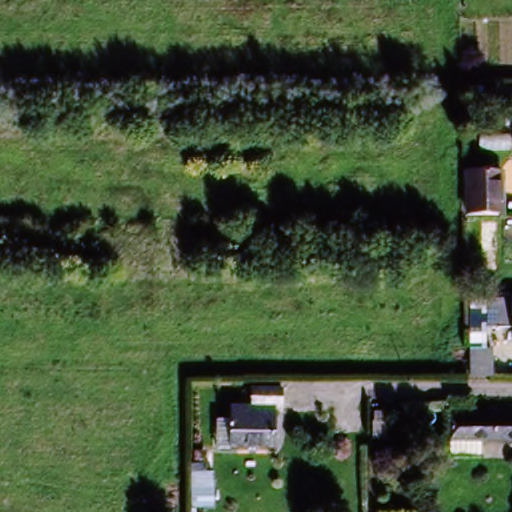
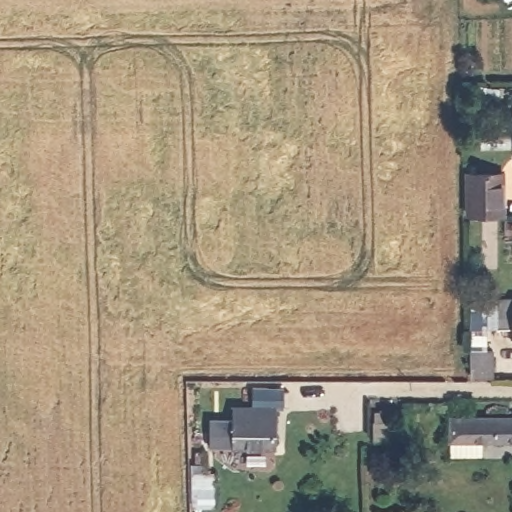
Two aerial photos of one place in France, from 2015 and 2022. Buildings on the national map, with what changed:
unchanged [(472,182),(505,182),(506,223),(472,224),(472,182)]
unchanged [(498,308),(512,308),(512,337),(499,337),(498,308)]
unchanged [(475,353),(495,352),(496,377),(476,377),(475,353)]
unchanged [(251,412),(253,396),(283,397),(282,414),(273,413),(271,452),(253,451),(230,448),(231,427),(232,410),(251,412)]
unchanged [(451,450),(453,423),(512,426),(512,453),(483,452),(482,467),(450,466),(451,450)]

